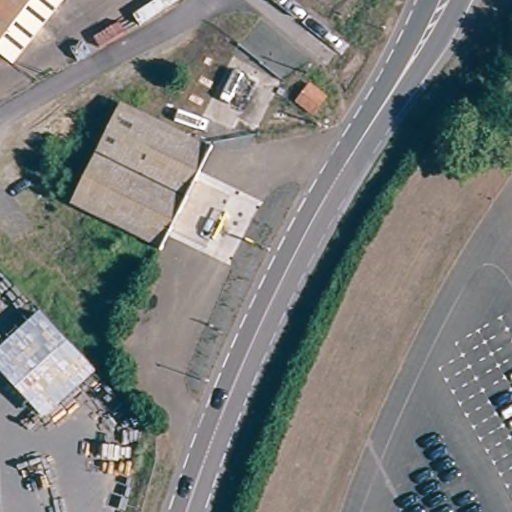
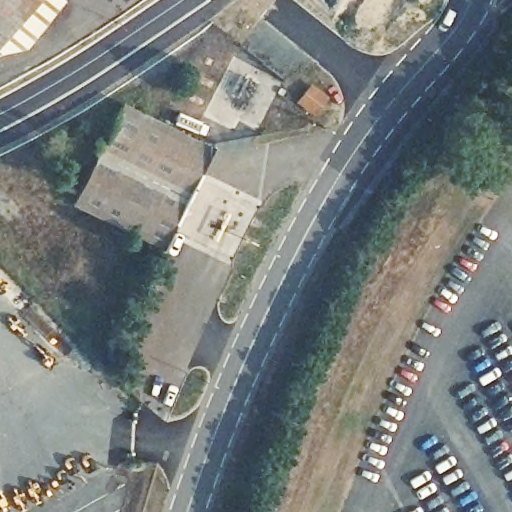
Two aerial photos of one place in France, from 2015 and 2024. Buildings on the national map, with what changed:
unchanged [(11,61),(0,52),(0,0),(50,0),(56,5),(11,61)]
unchanged [(297,103),(312,85),(327,98),(312,116),(297,103)]
unchanged [(72,202),(130,101),(215,149),(157,251),(72,202)]
demolished [(0,345),(42,309),(97,372),(45,417),(0,366),(0,345)]

